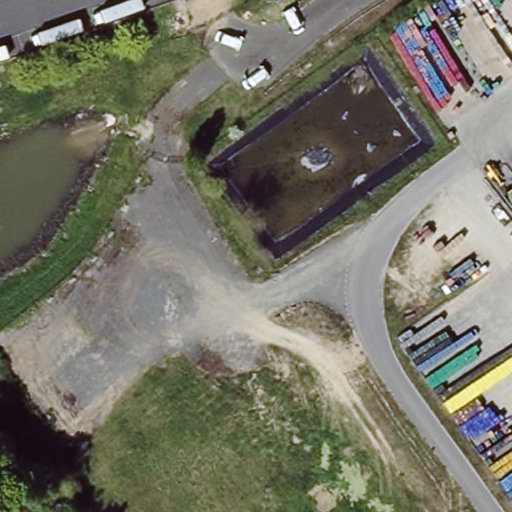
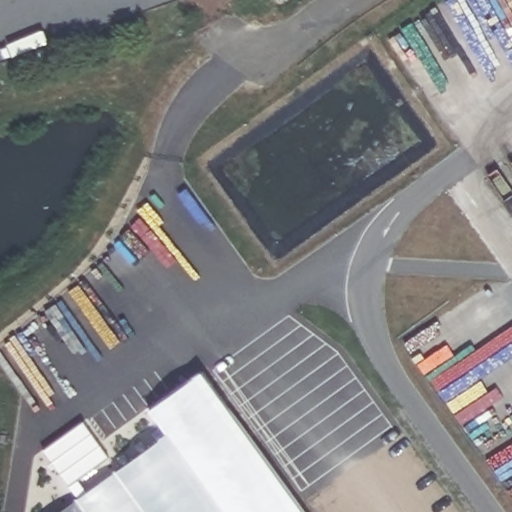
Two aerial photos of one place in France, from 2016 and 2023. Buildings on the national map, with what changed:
new [(43,449),(83,420),(109,458),(78,480),(86,491),(115,470),(164,435),(147,410),(201,369),(305,512),(57,512),(76,498),(43,449)]

